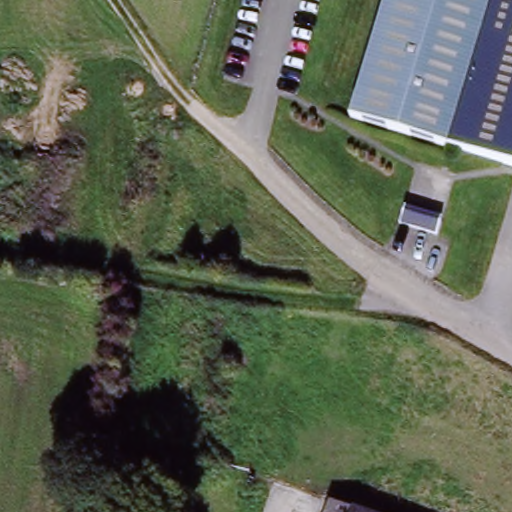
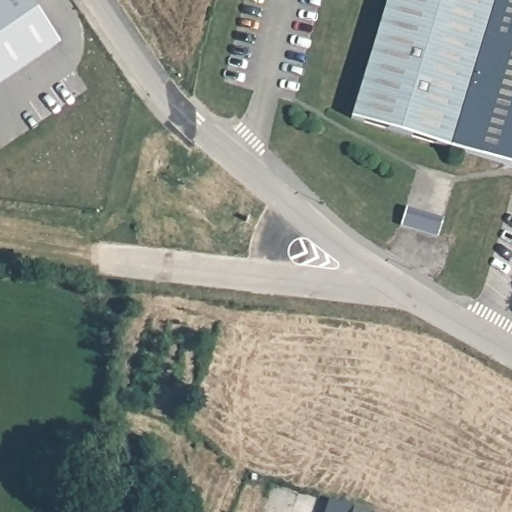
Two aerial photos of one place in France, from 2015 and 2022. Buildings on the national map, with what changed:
new [(0,87),(0,0),(29,0),(61,46),(0,87)]
unchanged [(383,0),(512,0),(512,149),(507,169),(346,120),(383,0)]
unchanged [(507,169),(512,149),(512,171),(507,169)]
unchanged [(407,209),(442,219),(437,237),(402,227),(407,209)]
unchanged [(320,509),(336,512),(319,512),(320,509)]

